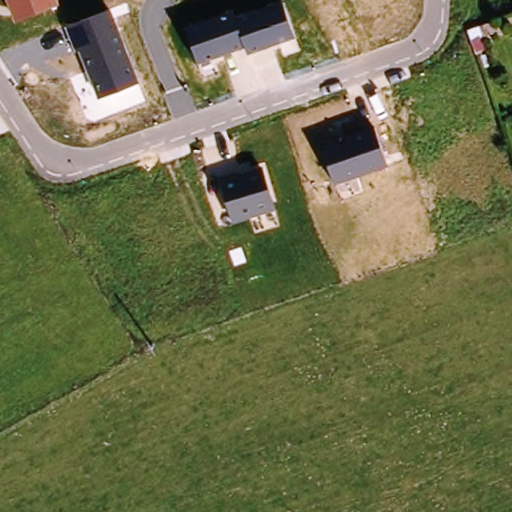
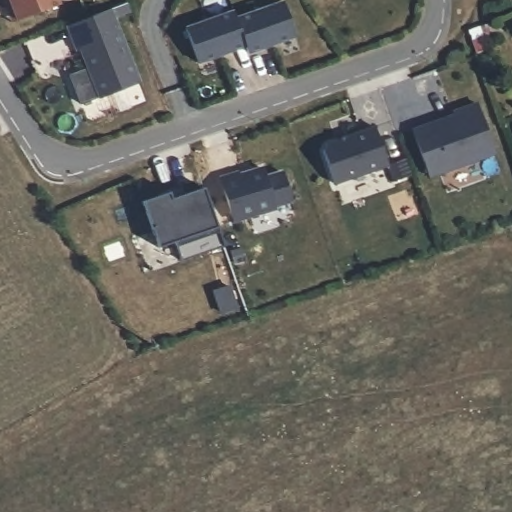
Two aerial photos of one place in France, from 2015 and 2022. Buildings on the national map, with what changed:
unchanged [(16,21),(7,0),(59,0),(60,5),(16,21)]
unchanged [(235,9),(237,15),(283,3),(295,39),(248,53),(245,47),(197,61),(185,21),(235,9)]
unchanged [(114,11),(140,81),(97,98),(80,49),(75,50),(67,28),(114,11)]
unchanged [(495,24),(497,31),(485,36),(482,28),(495,24)]
new [(454,116),(452,113),(476,105),(494,155),(429,178),(412,131),(454,116)]
unchanged [(375,128),(387,166),(335,183),(324,153),(325,141),(375,128)]
unchanged [(263,168),(275,209),(234,222),(221,181),(263,168)]
new [(166,189),(180,184),(183,192),(200,186),(222,244),(179,259),(172,240),(155,246),(139,200),(167,190),(166,189)]

